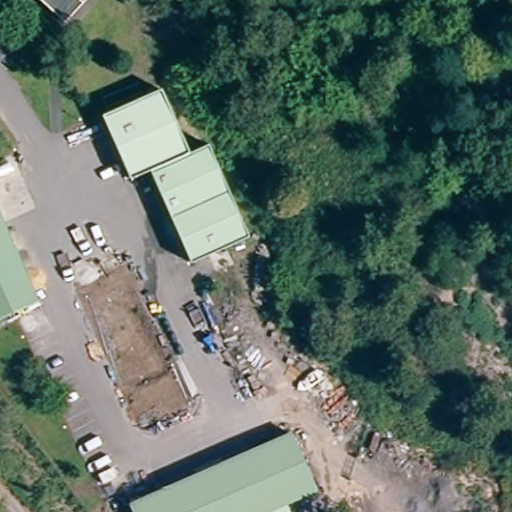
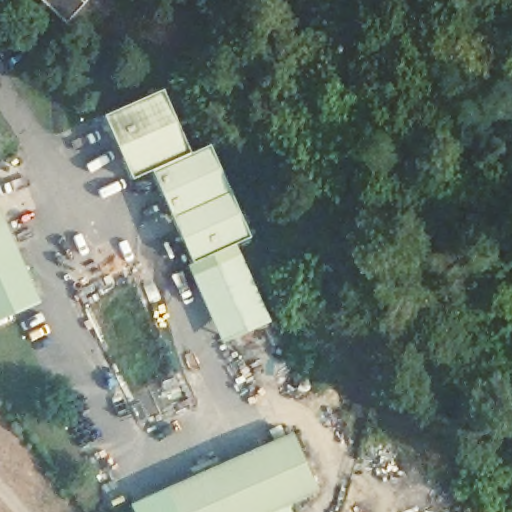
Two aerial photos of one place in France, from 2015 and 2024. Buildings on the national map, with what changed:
unchanged [(62,18),(43,0),(79,0),(62,18)]
unchanged [(155,81),(182,144),(201,135),(241,225),(182,252),(142,161),(122,169),(95,105),(155,81)]
unchanged [(0,260),(0,217),(17,253),(0,260)]
new [(241,225),(248,238),(234,244),(270,322),(220,344),(185,266),(189,263),(184,251),(241,225)]
unchanged [(0,318),(0,260),(17,253),(37,300),(0,318)]
unchanged [(309,481),(237,512),(129,512),(122,497),(285,426),(309,481)]

